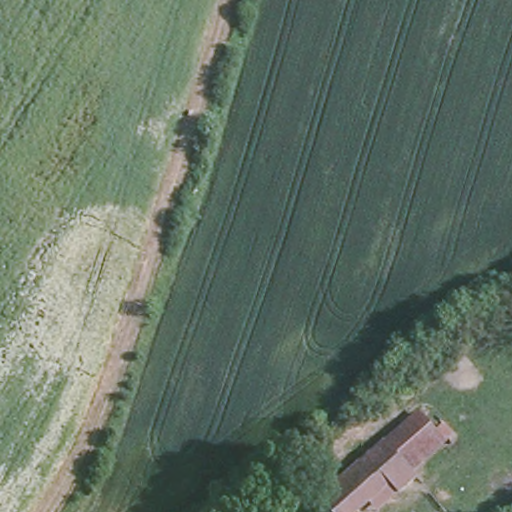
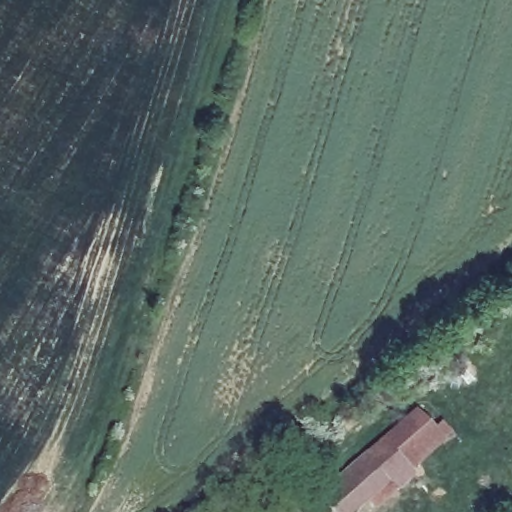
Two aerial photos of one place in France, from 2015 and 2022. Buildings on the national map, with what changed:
unchanged [(418,408),(435,427),(444,419),(457,436),(416,475),(384,440),(418,408)]
unchanged [(384,440),(416,475),(398,491),(389,480),(353,512),(336,512),(322,496),(384,440)]

